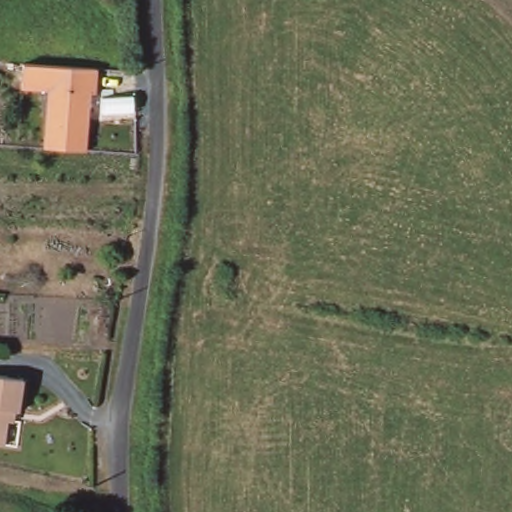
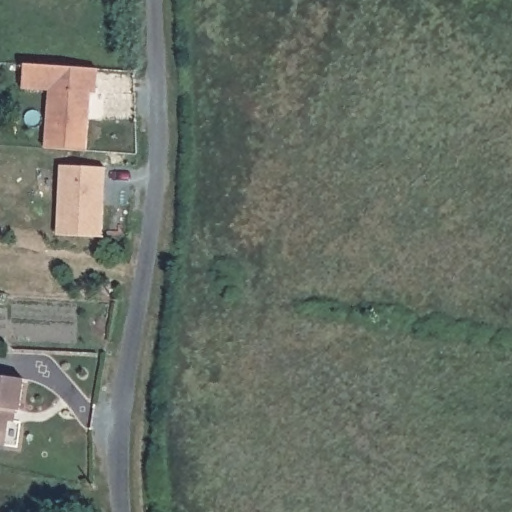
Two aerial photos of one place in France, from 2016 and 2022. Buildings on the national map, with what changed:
unchanged [(19,90),(21,67),(103,74),(103,97),(93,96),(91,150),(45,147),(47,91),(19,90)]
new [(60,167),(105,169),(102,239),(57,236),(60,167)]
unchanged [(25,380),(26,405),(11,402),(3,447),(0,446),(0,375),(25,380)]

